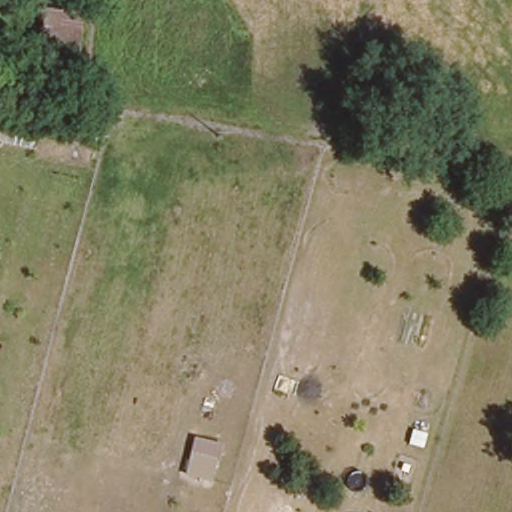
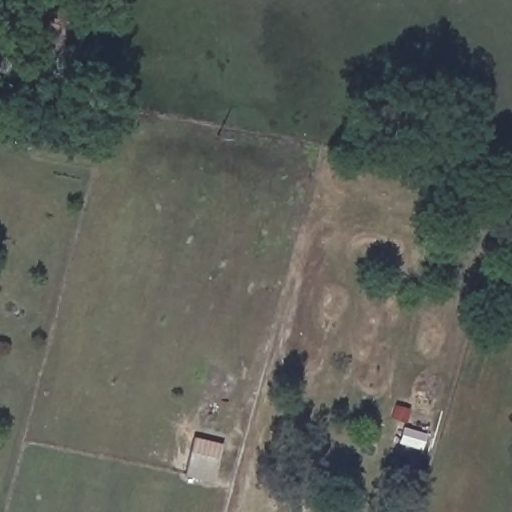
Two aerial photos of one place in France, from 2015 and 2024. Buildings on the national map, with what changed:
unchanged [(214,480),(186,475),(195,435),(223,443),(214,480)]

